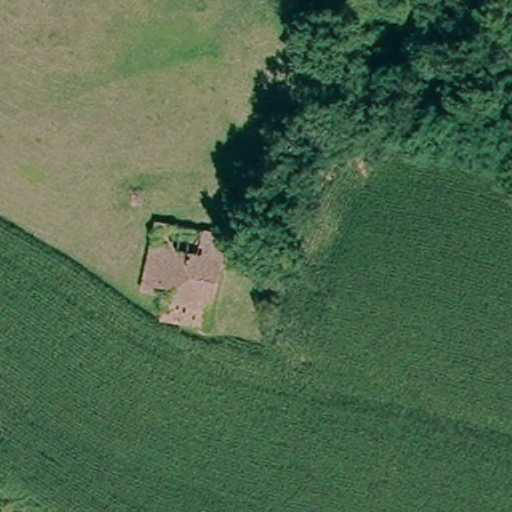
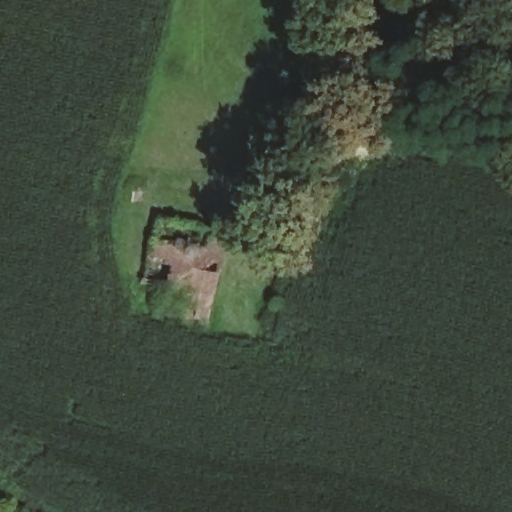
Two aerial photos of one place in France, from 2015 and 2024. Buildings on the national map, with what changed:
unchanged [(156,220),(225,233),(207,322),(164,311),(166,287),(145,282),(149,259),(156,220)]

